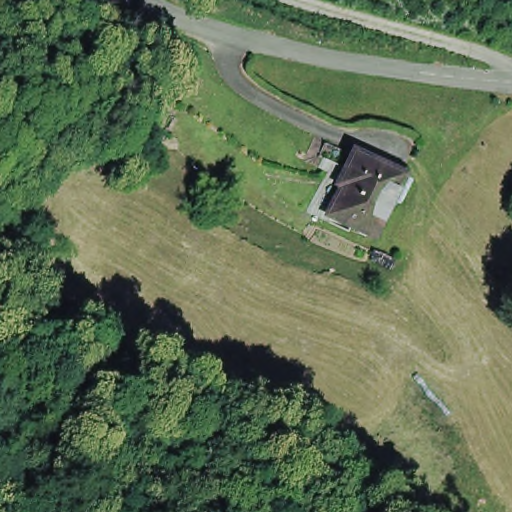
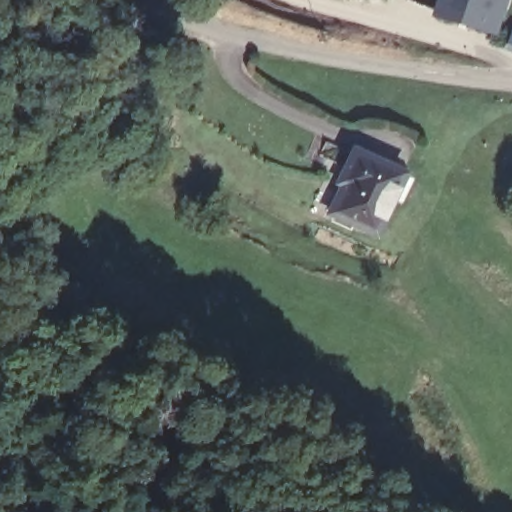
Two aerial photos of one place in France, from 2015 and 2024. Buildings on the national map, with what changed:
new [(430,18),(435,0),(508,0),(496,40),(430,18)]
unchanged [(379,239),(334,219),(351,180),(344,191),(341,188),(347,173),(356,156),(362,158),(406,179),(379,239)]

